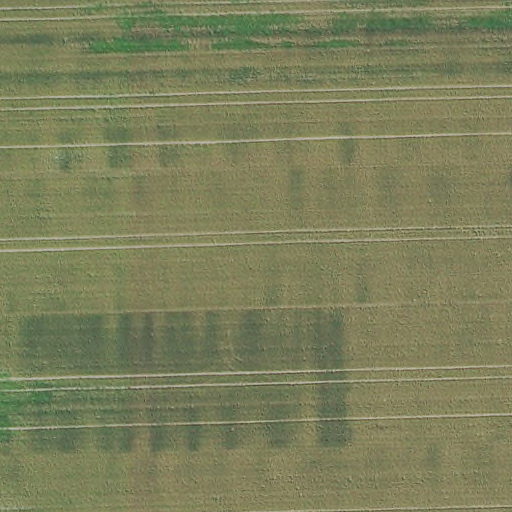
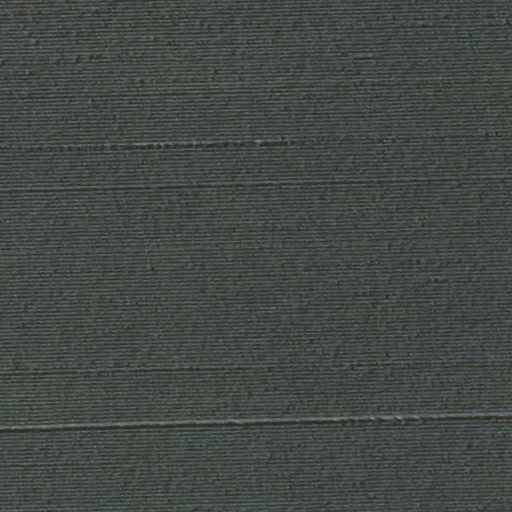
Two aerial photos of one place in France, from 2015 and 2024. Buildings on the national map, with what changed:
[]

